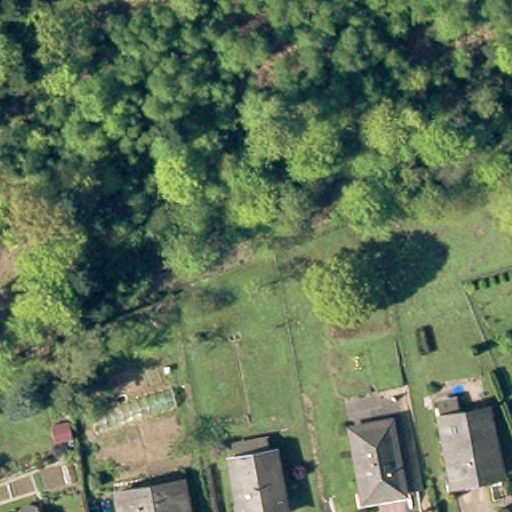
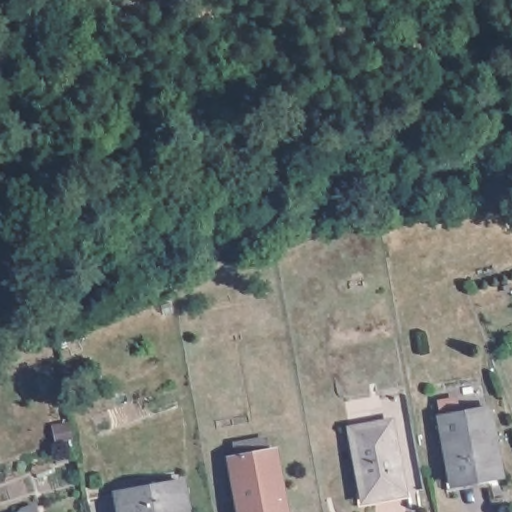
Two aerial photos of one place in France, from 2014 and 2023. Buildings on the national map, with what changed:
unchanged [(494,415),(506,480),(457,488),(444,424),(494,415)]
unchanged [(396,426),(409,499),(370,507),(356,433),(396,426)]
unchanged [(240,512),(230,458),(235,458),(233,445),(266,439),(268,452),(275,451),(286,512),(240,512)]
unchanged [(125,512),(122,493),(188,481),(193,512),(125,512)]

